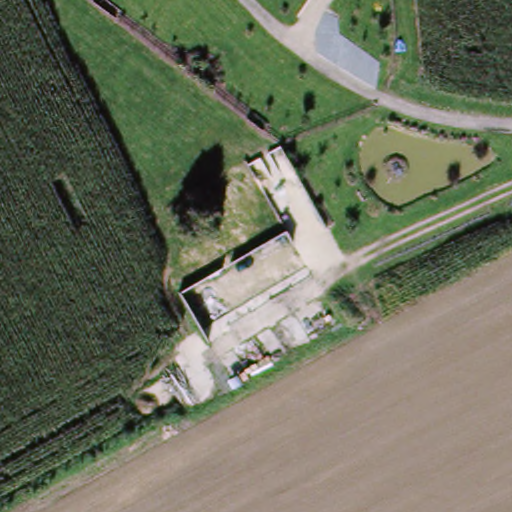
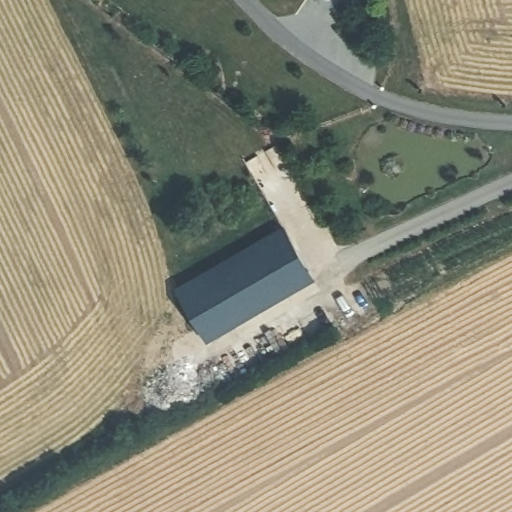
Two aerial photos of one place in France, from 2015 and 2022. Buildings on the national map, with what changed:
demolished [(290,230),(314,272),(219,330),(212,318),(189,329),(174,300),(290,230)]

